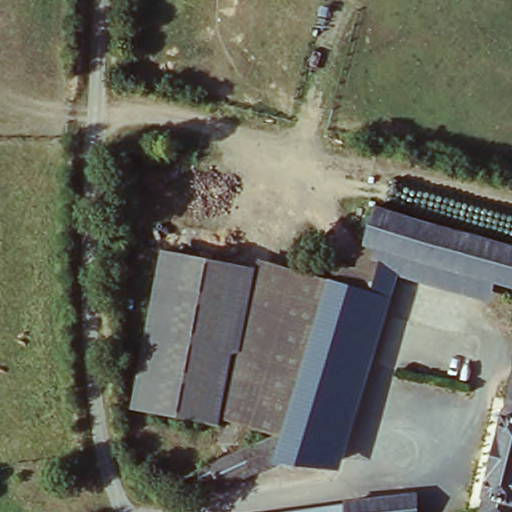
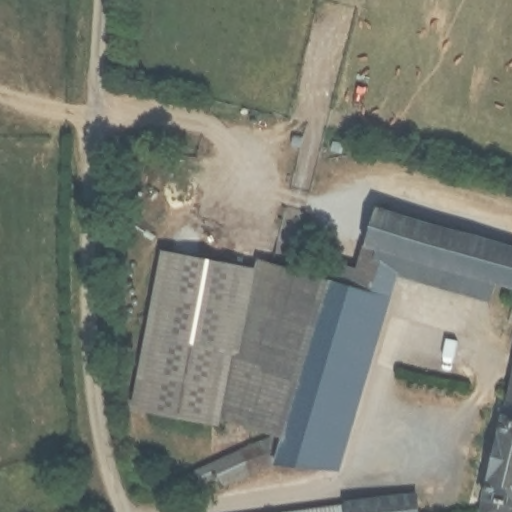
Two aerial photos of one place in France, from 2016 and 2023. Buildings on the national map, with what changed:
unchanged [(383,252),(350,242),(361,206),(512,249),(512,287),(489,281),(383,252)]
unchanged [(394,298),(338,281),(350,242),(383,252),(377,272),(401,278),(394,298)]
unchanged [(483,299),(401,278),(377,272),(383,252),(489,281),(483,299)]
unchanged [(255,431),(218,420),(132,410),(164,255),(250,270),(257,256),(305,271),(255,431)]
unchanged [(305,271),(338,281),(301,404),(291,438),(248,455),(305,271)]
unchanged [(345,470),(325,468),(341,413),(301,404),(338,281),(394,298),(345,470)]
unchanged [(512,512),(486,512),(512,396),(512,512)]
unchanged [(341,413),(325,468),(280,468),(228,490),(220,481),(207,488),(202,478),(184,487),(181,481),(211,468),(248,455),(291,438),(301,404),(341,413)]
unchanged [(339,505),(406,497),(408,512),(340,512),(339,505)]

